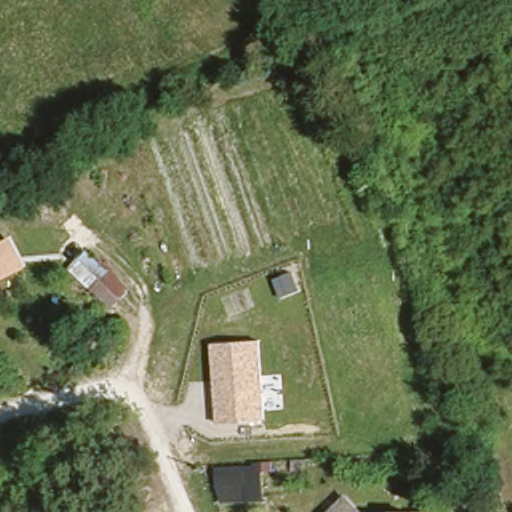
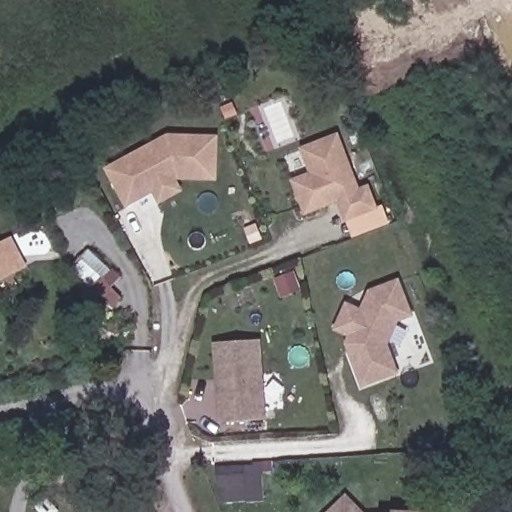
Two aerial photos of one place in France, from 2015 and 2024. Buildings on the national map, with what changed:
new [(304,216),(290,180),(309,173),(300,148),(339,133),(360,189),(371,185),(379,210),(344,223),(336,204),(304,216)]
new [(215,180),(175,179),(180,191),(159,203),(153,192),(141,199),(137,192),(123,200),(106,168),(168,135),(215,137),(215,180)]
unchanged [(27,268),(0,283),(0,243),(11,237),(27,268)]
unchanged [(130,289),(110,311),(70,272),(85,248),(130,289)]
new [(333,331),(346,302),(360,309),(368,290),(399,279),(412,317),(397,322),(387,345),(399,374),(360,387),(344,344),(347,337),(333,331)]
unchanged [(266,420),(218,423),(212,343),(260,340),(266,420)]
unchanged [(261,462),(261,501),(212,502),(212,465),(261,462)]
unchanged [(340,494),(360,512),(324,512),(340,494)]
unchanged [(382,510),(382,505),(418,496),(422,512),(375,512),(382,510)]

